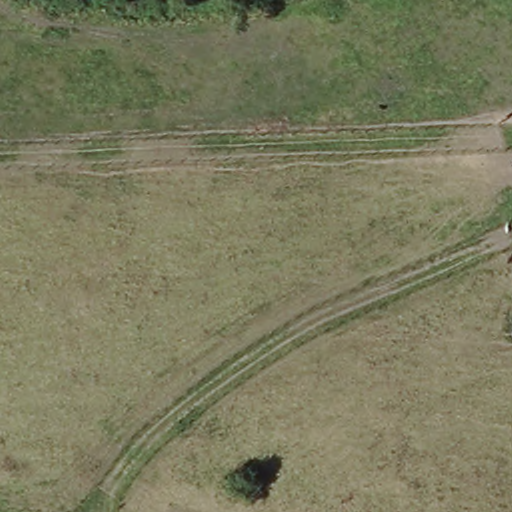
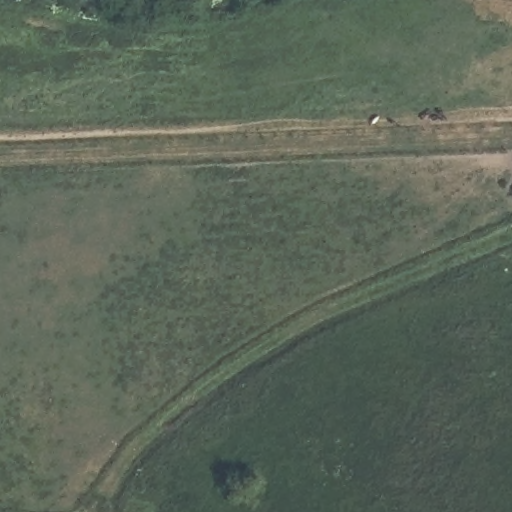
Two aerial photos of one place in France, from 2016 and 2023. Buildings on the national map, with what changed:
[]

